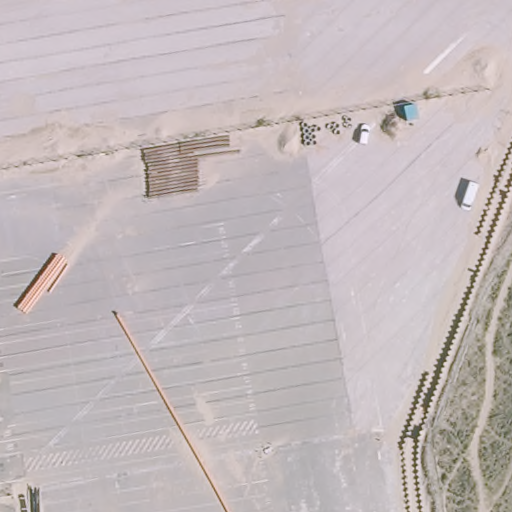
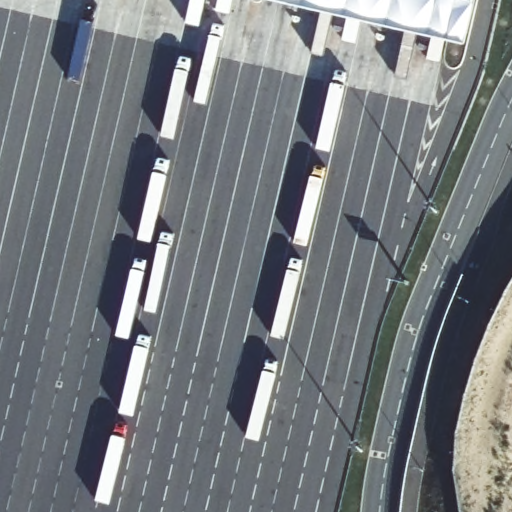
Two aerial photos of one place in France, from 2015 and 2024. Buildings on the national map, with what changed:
new [(253,0),(479,0),(467,49),(253,0)]

